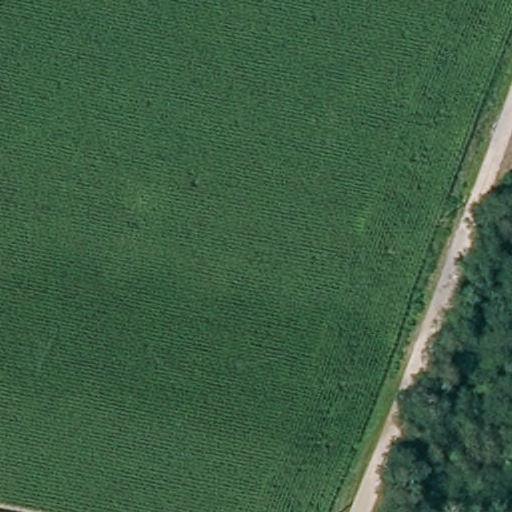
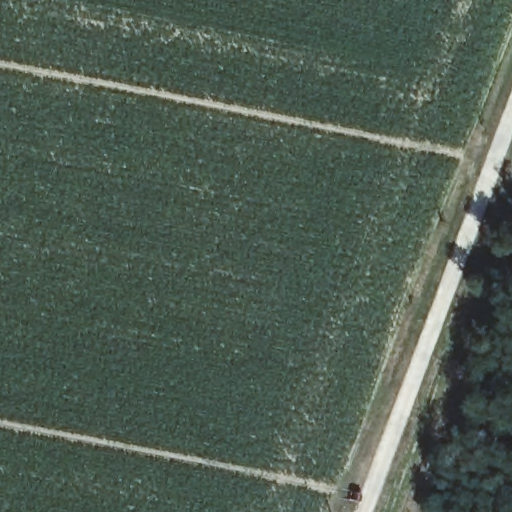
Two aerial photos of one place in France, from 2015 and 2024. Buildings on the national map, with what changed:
[]

